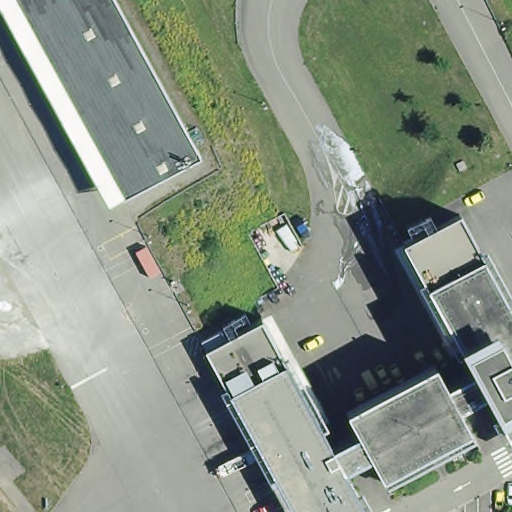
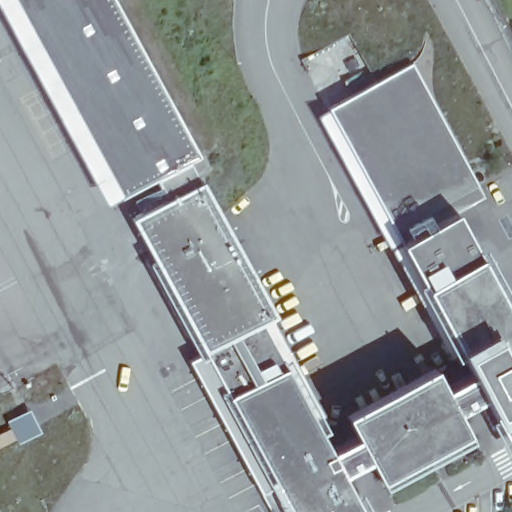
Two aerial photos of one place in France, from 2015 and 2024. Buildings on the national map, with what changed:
unchanged [(0,0),(121,0),(202,154),(110,203),(0,2),(0,0)]
new [(412,63),(488,199),(469,209),(410,242),(402,247),(328,108),(412,63)]
new [(274,313),(203,352),(131,218),(164,200),(154,180),(190,160),(274,313)]
unchanged [(272,323),(336,446),(362,436),(350,410),(440,360),(448,380),(472,372),(410,242),(469,209),(512,286),(512,444),(493,400),(465,414),(480,440),(392,486),(375,459),(354,468),(374,512),(294,512),(210,353),(272,323)]

